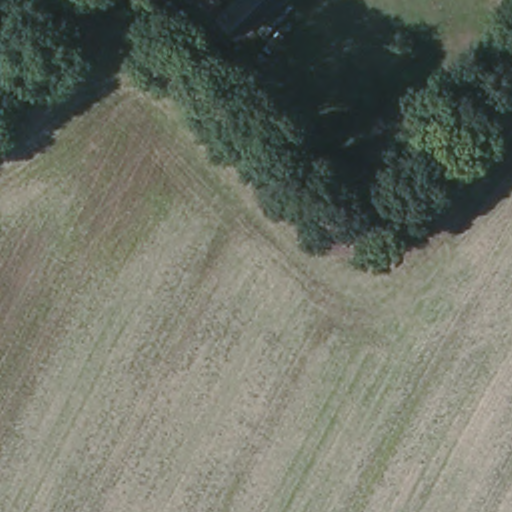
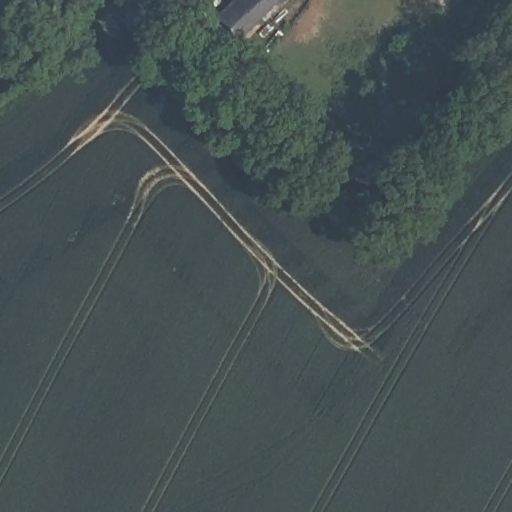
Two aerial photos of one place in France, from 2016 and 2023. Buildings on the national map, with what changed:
unchanged [(217,23),(205,35),(171,0),(196,0),(217,23)]
unchanged [(256,9),(225,28),(210,4),(216,0),(269,0),(256,9)]

